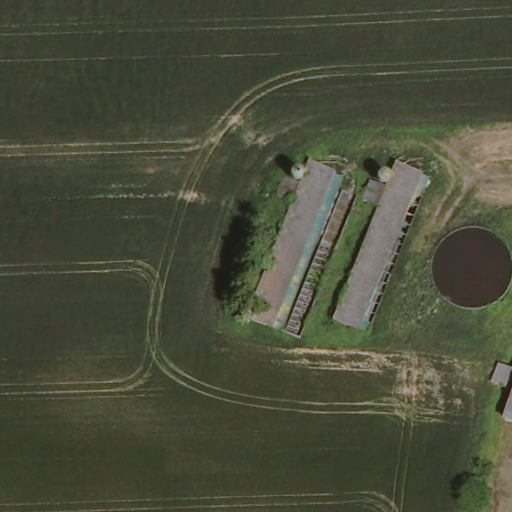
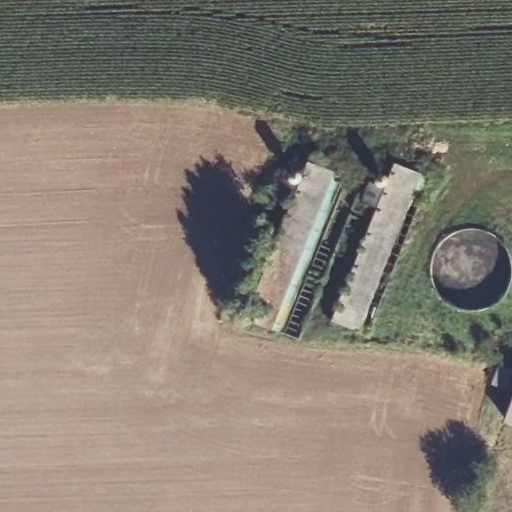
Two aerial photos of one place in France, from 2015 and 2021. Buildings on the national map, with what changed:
unchanged [(337,179),(273,333),(239,319),(304,165),(337,179)]
unchanged [(430,179),(364,333),(330,319),(395,165),(430,179)]
unchanged [(497,419),(512,383),(512,425),(497,419)]

